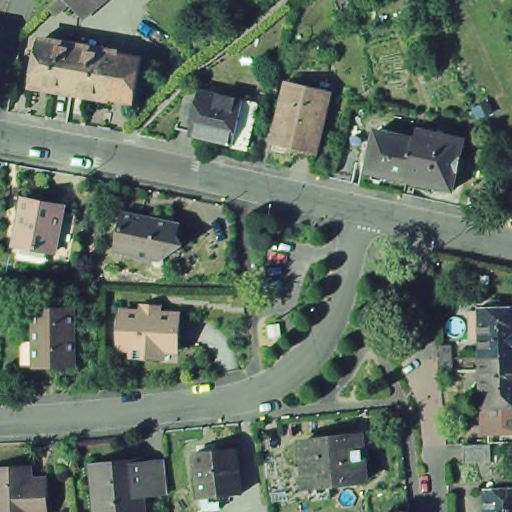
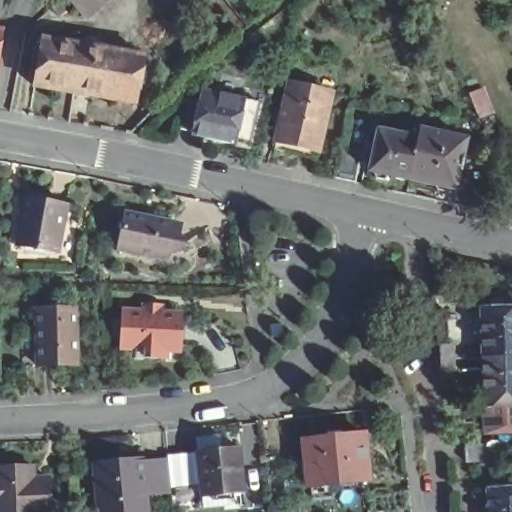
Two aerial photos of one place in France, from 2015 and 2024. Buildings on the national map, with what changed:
unchanged [(86,20),(75,6),(61,20),(53,11),(65,0),(110,0),(98,10),(86,20)]
unchanged [(0,33),(5,34),(0,58),(0,33)]
unchanged [(74,97),(34,91),(42,44),(82,51),(74,97)]
unchanged [(113,104),(74,97),(82,51),(121,57),(113,104)]
unchanged [(146,62),(137,108),(113,104),(121,57),(146,62)]
unchanged [(316,88),(336,93),(322,152),(320,159),(279,150),(281,142),(285,124),(290,102),(295,84),(296,84),(316,88)]
unchanged [(194,137),(195,133),(180,130),(190,87),(190,86),(206,90),(205,92),(210,94),(211,87),(218,89),(216,95),(262,106),(255,139),(252,151),(238,147),(194,137)]
unchanged [(410,180),(408,179),(387,175),(387,176),(383,180),(375,179),(373,172),(374,172),(369,171),(378,131),(417,139),(419,129),(420,130),(410,180)]
unchanged [(466,140),(462,157),(465,157),(461,172),(460,172),(455,190),(451,189),(451,190),(447,192),(437,191),(435,187),(435,185),(410,180),(420,130),(466,140)]
unchanged [(362,150),(356,179),(337,175),(343,146),(362,150)]
unchanged [(65,207),(56,255),(20,247),(28,200),(65,207)]
unchanged [(182,224),(180,231),(189,245),(171,257),(163,255),(158,258),(122,251),(130,212),(182,224)]
unchanged [(42,366),(27,366),(27,339),(41,338),(41,310),(81,309),(82,365),(42,366)]
unchanged [(483,360),(482,310),(512,309),(512,359),(483,360)]
unchanged [(120,322),(140,321),(140,313),(160,312),(160,321),(179,320),(180,355),(165,356),(165,363),(143,362),(145,356),(121,357),(120,322)]
unchanged [(270,325),(281,323),(283,336),(271,337),(270,325)]
unchanged [(453,358),(454,371),(441,372),(440,358),(439,346),(451,345),(453,358)]
unchanged [(512,359),(512,409),(491,410),(485,410),(483,360),(512,359)]
unchanged [(492,445),(492,444),(491,410),(512,409),(512,444),(492,445)]
unchanged [(310,488),(306,443),(365,437),(369,482),(332,486),(334,498),(313,501),(311,488),(310,488)]
unchanged [(494,445),(495,462),(466,464),(466,446),(494,445)]
unchanged [(215,453),(240,450),(245,495),(225,497),(226,510),(206,512),(205,500),(203,500),(198,455),(207,453),(215,453)]
unchanged [(172,460),(175,476),(176,492),(151,495),(152,512),(147,512),(104,512),(99,465),(123,462),(123,465),(147,462),(172,460)]
unchanged [(15,467),(22,466),(23,480),(50,478),(50,497),(49,497),(50,512),(0,512),(0,468),(15,468),(15,467)]
unchanged [(512,489),(512,512),(489,512),(488,490),(512,489)]

